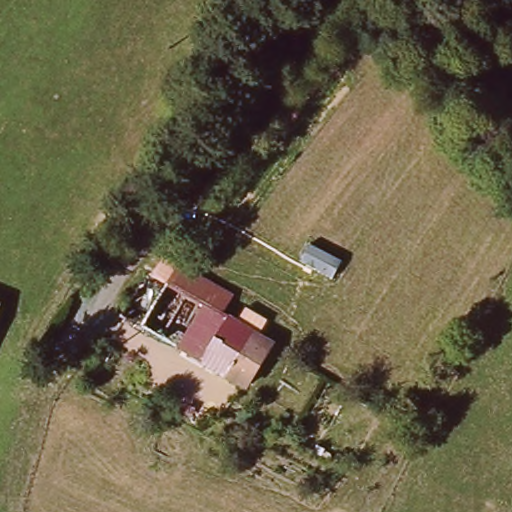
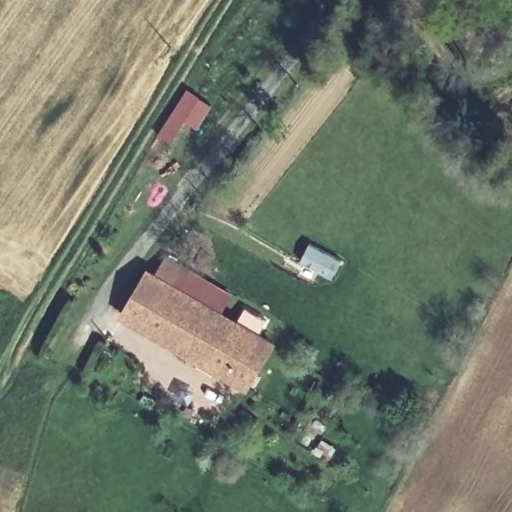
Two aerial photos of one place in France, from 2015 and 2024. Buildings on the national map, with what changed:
new [(211,105),(196,128),(184,120),(169,144),(157,136),(187,89),(211,105)]
unchanged [(342,260),(334,277),(302,262),(311,244),(342,260)]
unchanged [(224,295),(215,314),(166,292),(145,282),(155,263),(177,273),(224,295)]
unchanged [(146,338),(121,326),(143,281),(145,282),(166,292),(146,338)]
unchanged [(255,386),(146,338),(166,292),(215,314),(276,342),(255,386)]

